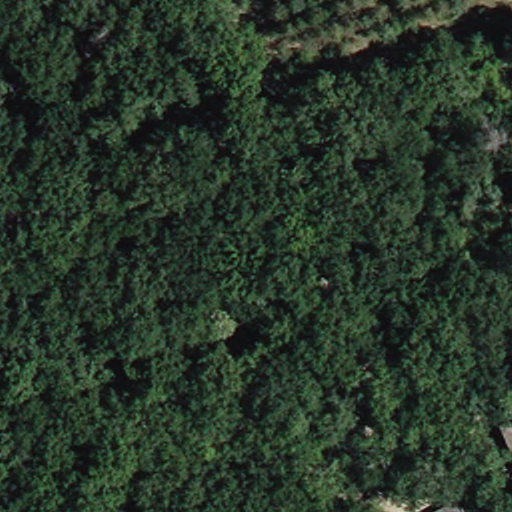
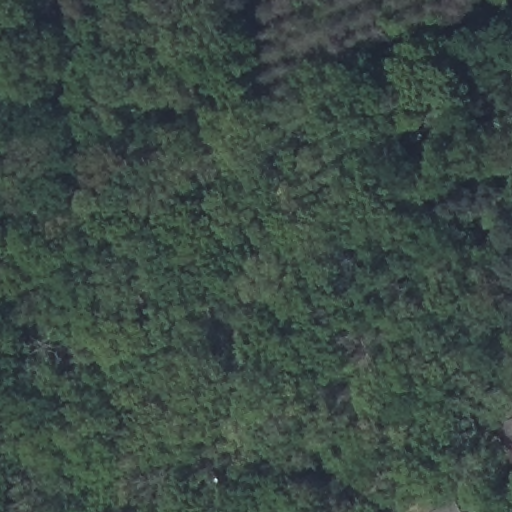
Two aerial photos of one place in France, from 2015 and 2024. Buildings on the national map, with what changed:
unchanged [(458,512),(473,503),(478,512),(458,512)]

